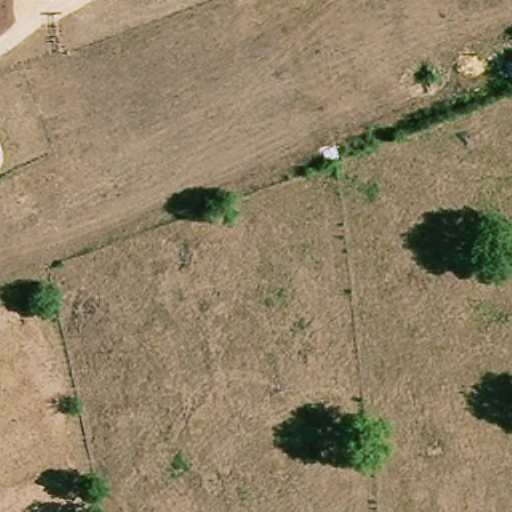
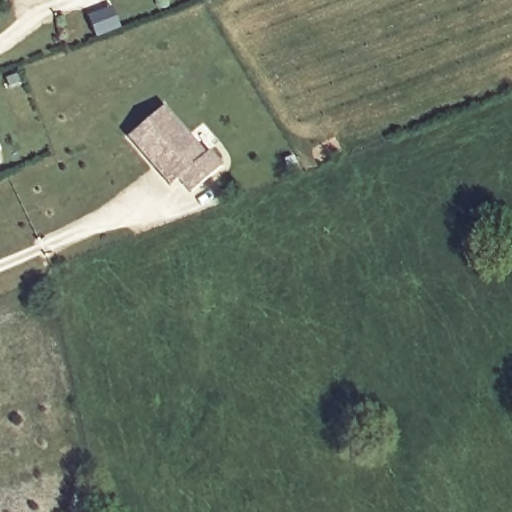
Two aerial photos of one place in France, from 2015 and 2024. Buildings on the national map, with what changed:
new [(205,153),(210,150),(222,166),(190,195),(177,180),(170,187),(126,137),(164,105),(205,153)]

